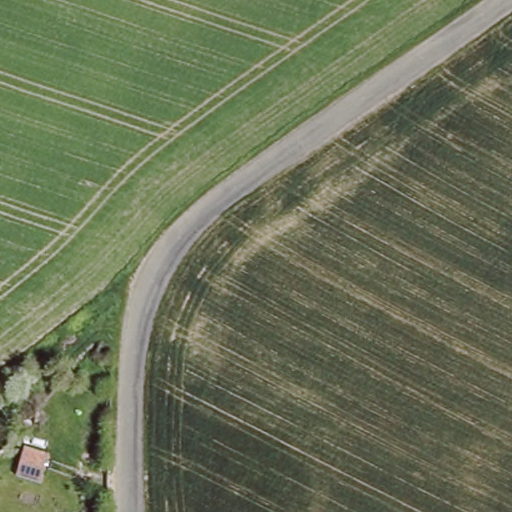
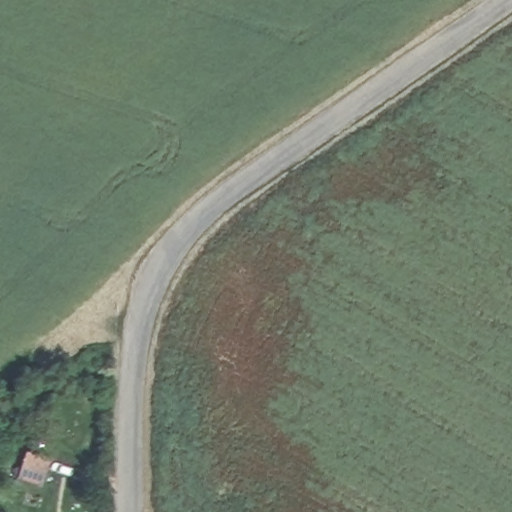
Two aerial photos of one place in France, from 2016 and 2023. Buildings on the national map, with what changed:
[]

